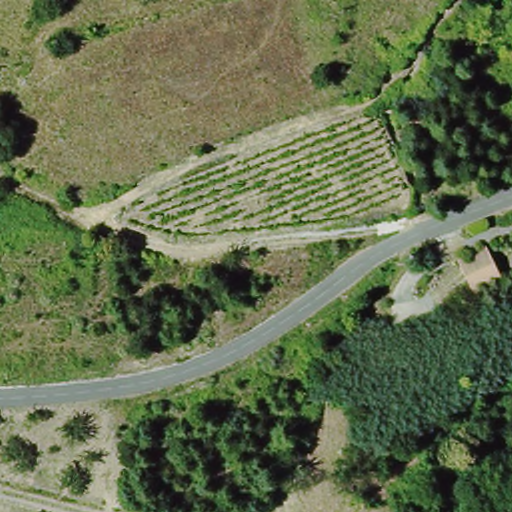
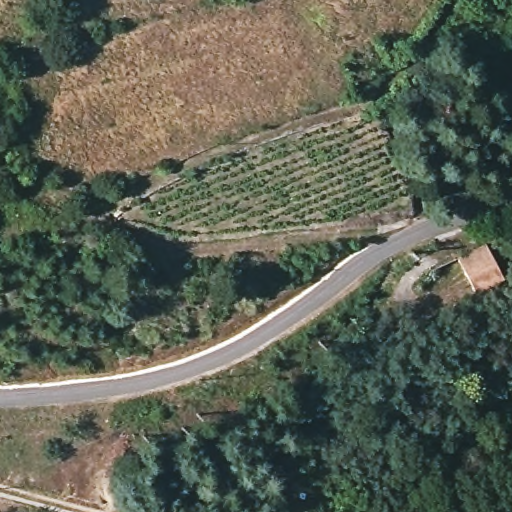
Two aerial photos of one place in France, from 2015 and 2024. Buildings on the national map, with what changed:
unchanged [(468,287),(453,260),(489,244),(505,271),(468,287)]

